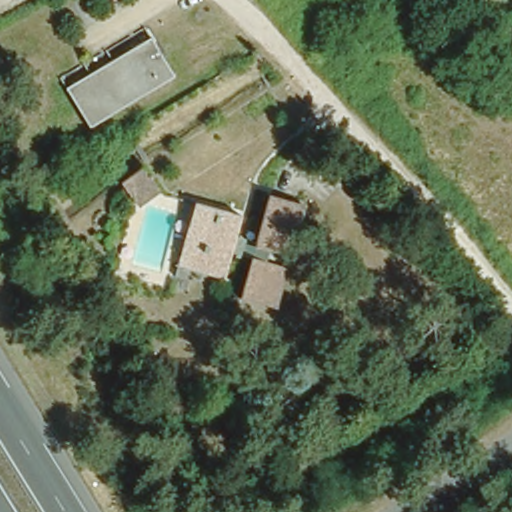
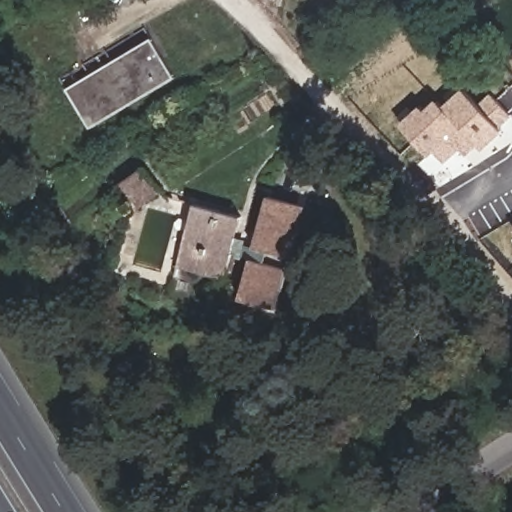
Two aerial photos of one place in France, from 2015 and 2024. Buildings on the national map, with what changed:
unchanged [(61,81),(147,31),(169,71),(83,120),(61,81)]
new [(421,105),(425,111),(437,100),(444,106),(465,88),(479,105),(491,94),(512,115),(512,117),(501,128),(504,131),(484,150),(478,145),(466,156),(460,149),(446,163),(435,151),(429,156),(400,126),(421,105)]
unchanged [(124,178),(147,166),(154,185),(132,196),(124,178)]
unchanged [(281,271),(269,313),(261,310),(232,300),(262,198),(289,205),(298,207),(285,253),(277,251),(272,268),(276,269),(281,271)]
unchanged [(196,204),(243,217),(226,272),(180,259),(196,204)]

